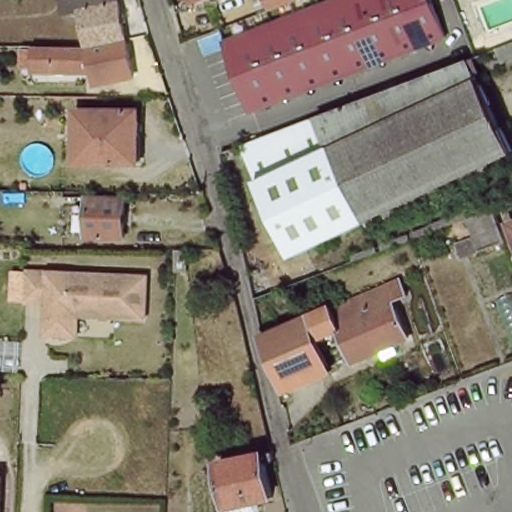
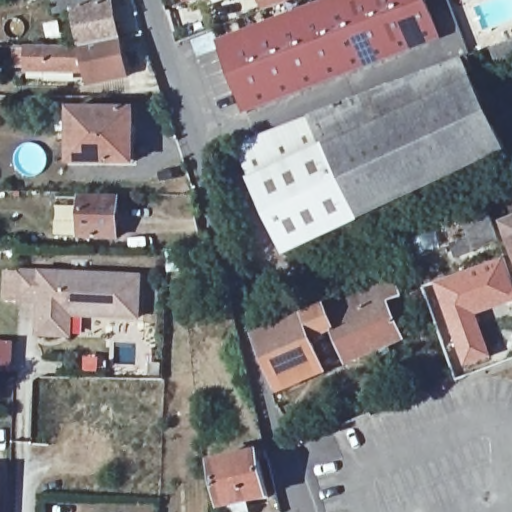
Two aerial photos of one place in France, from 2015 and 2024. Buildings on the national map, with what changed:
unchanged [(60,13),(57,0),(113,0),(122,39),(87,46),(83,47),(76,10),(60,13)]
unchanged [(189,0),(193,0),(190,1),(189,0)]
unchanged [(298,88),(251,106),(224,38),(232,35),(323,0),(432,0),(444,32),(298,88)]
unchanged [(262,9),(284,0),(323,0),(232,35),(227,22),(262,9)]
unchanged [(444,32),(432,0),(447,0),(470,54),(394,83),(313,114),(300,88),(444,32)]
unchanged [(16,66),(17,46),(22,46),(30,46),(81,48),(83,47),(87,46),(122,39),(129,77),(90,84),(88,71),(30,70),(30,66),(16,66)]
unchanged [(490,49),(512,41),(512,60),(496,65),(490,49)]
unchanged [(313,114),(394,83),(470,54),(512,144),(512,151),(494,159),(497,167),(374,220),(372,215),(299,249),(242,140),(313,114)]
unchanged [(73,110),(134,110),(134,138),(132,138),(131,163),(72,163),(73,110)]
unchanged [(124,194),(124,234),(86,233),(87,215),(73,214),(74,201),(87,202),(87,192),(124,194)]
unchanged [(67,193),(68,205),(38,206),(37,193),(67,193)]
unchanged [(471,223),(494,214),(505,247),(462,264),(455,249),(474,242),(467,224),(471,223)]
unchanged [(509,229),(512,228),(512,237),(509,229)]
unchanged [(169,250),(180,250),(182,270),(169,270),(169,250)]
new [(504,256),(512,279),(512,305),(479,317),(492,358),(462,369),(432,283),(504,256)]
unchanged [(62,337),(39,335),(39,317),(40,304),(18,303),(19,283),(19,273),(140,277),(139,318),(72,315),(71,337),(62,337)]
unchanged [(380,353),(377,345),(349,357),(340,338),(335,340),(330,327),(313,334),(303,312),(326,302),(326,304),(394,275),(402,293),(388,298),(404,334),(390,339),(394,348),(380,353)]
unchanged [(303,312),(313,334),(324,362),(279,382),(264,348),(258,332),(303,312)]
unchanged [(243,511),(242,504),(225,508),(224,503),(215,459),(262,449),(268,448),(270,455),(261,457),(269,493),(250,497),(253,509),(243,511)]

